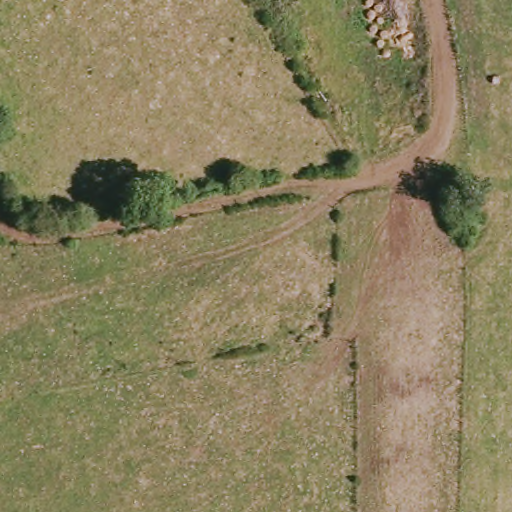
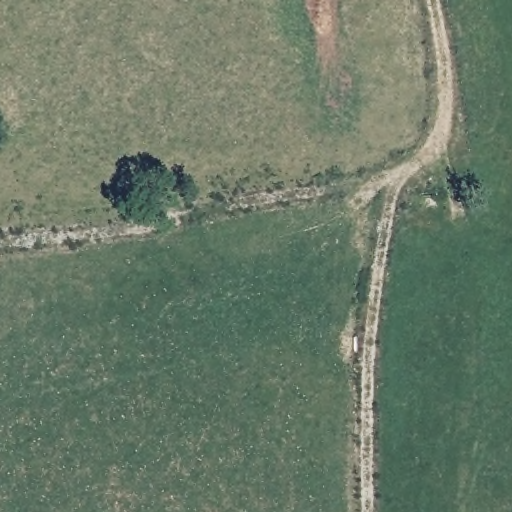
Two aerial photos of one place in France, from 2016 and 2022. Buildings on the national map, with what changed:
[]

